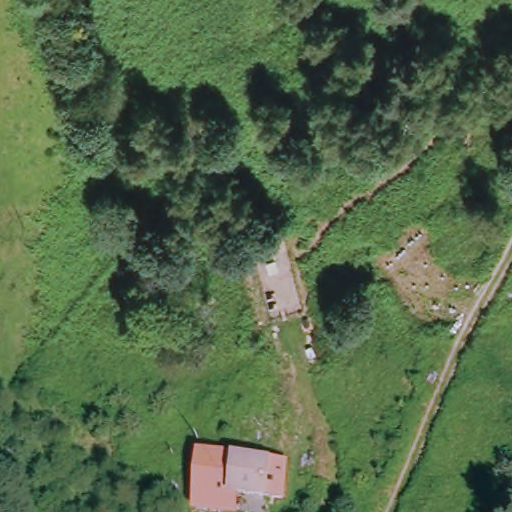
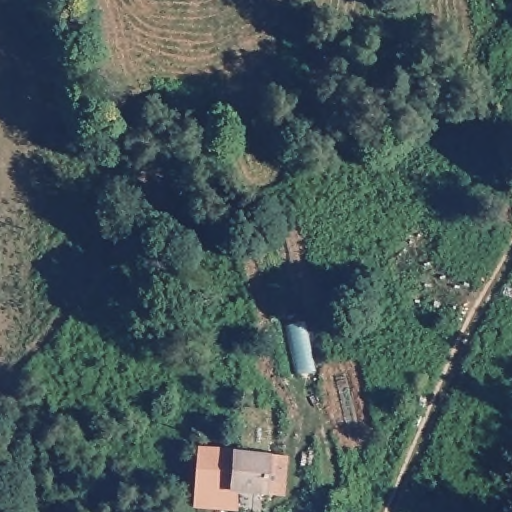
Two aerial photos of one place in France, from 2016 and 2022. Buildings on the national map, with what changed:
unchanged [(198,452),(284,461),(280,494),(233,492),(231,511),(191,505),(198,452)]

